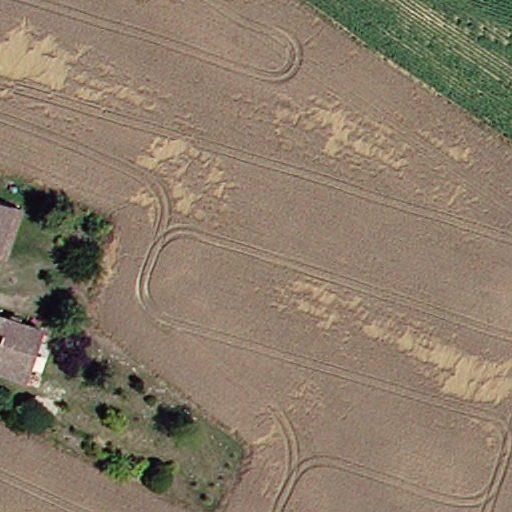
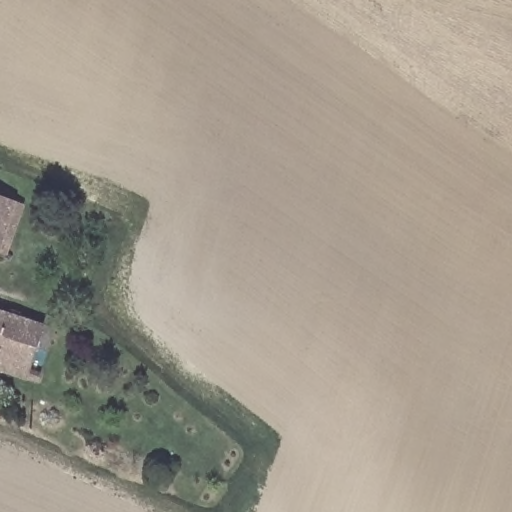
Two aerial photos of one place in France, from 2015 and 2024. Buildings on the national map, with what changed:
unchanged [(14,253),(2,249),(0,248),(0,196),(15,200),(27,204),(14,253)]
unchanged [(22,374),(0,367),(0,311),(41,322),(22,374)]

